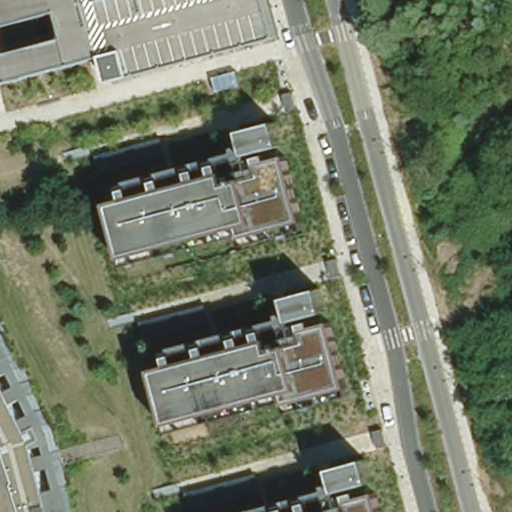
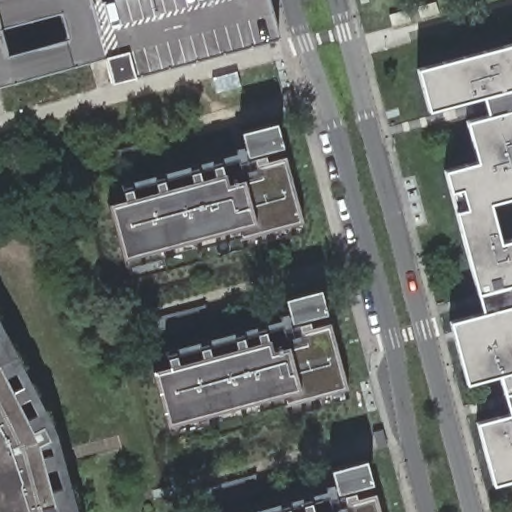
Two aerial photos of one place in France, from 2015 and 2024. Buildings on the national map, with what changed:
unchanged [(113,80),(105,55),(73,64),(14,81),(0,84),(0,0),(269,0),(279,35),(113,80)]
new [(418,67),(512,42),(512,196),(490,202),(500,242),(512,239),(512,283),(510,284),(512,293),(512,479),(493,483),(477,422),(511,413),(500,375),(467,383),(450,320),(482,312),(445,171),(478,162),(467,122),(488,116),(483,97),(429,111),(418,67)]
unchanged [(285,159),(300,220),(240,237),(127,265),(124,255),(109,204),(126,200),(121,182),(246,147),(242,132),(277,123),(283,146),(285,159)]
new [(167,132),(172,150),(98,170),(93,152),(167,132)]
unchanged [(347,386),(288,402),(173,432),(169,422),(156,371),(170,367),(167,350),(291,315),(287,298),(321,289),(326,312),(329,323),(347,386)]
new [(212,300),(217,318),(143,337),(138,320),(212,300)]
unchanged [(79,512),(0,512),(0,318),(58,431),(79,512)]
unchanged [(379,512),(238,512),(336,485),(332,469),(366,458),(373,482),(375,496),(379,512)]
new [(258,470),(263,488),(189,508),(184,490),(258,470)]

